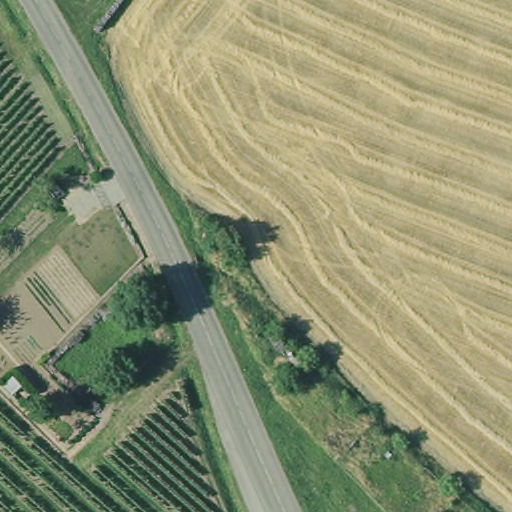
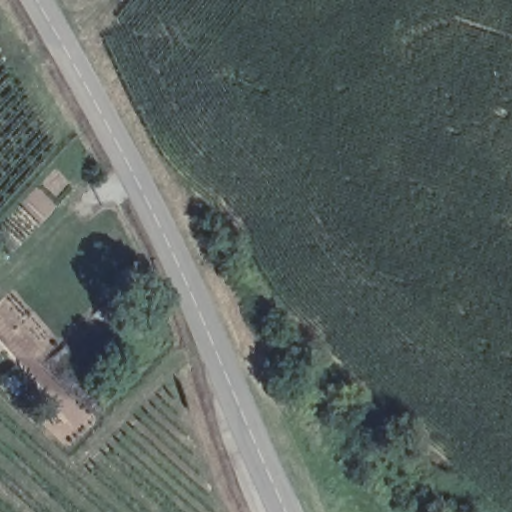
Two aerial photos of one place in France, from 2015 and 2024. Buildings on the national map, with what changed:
[]

